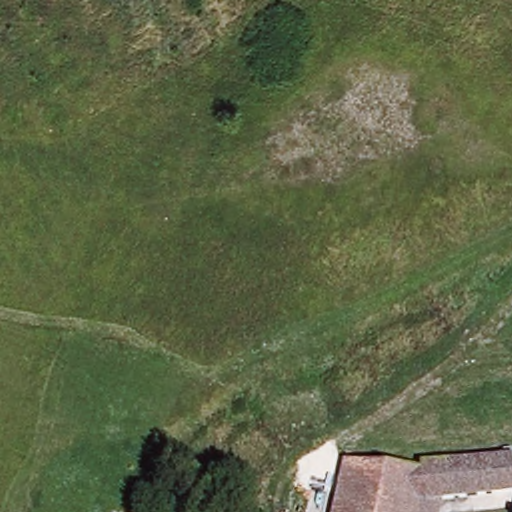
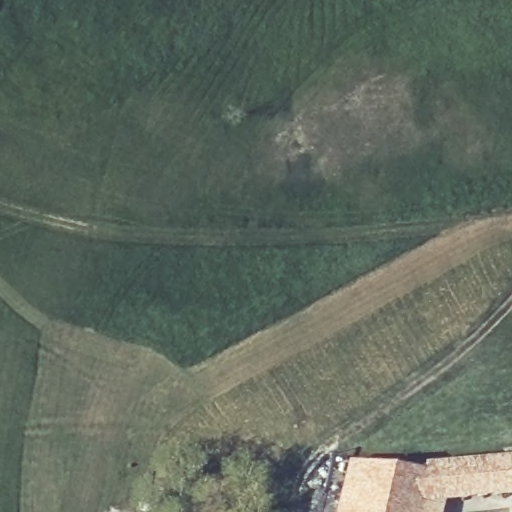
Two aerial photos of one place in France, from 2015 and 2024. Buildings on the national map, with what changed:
unchanged [(343,458),(426,474),(431,462),(511,457),(512,468),(512,493),(431,497),(430,512),(330,512),(343,458)]

